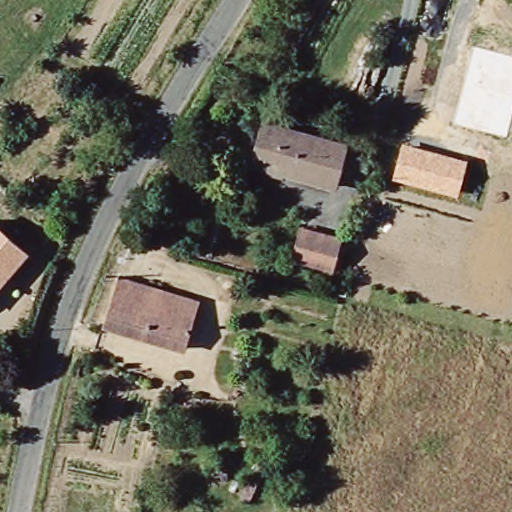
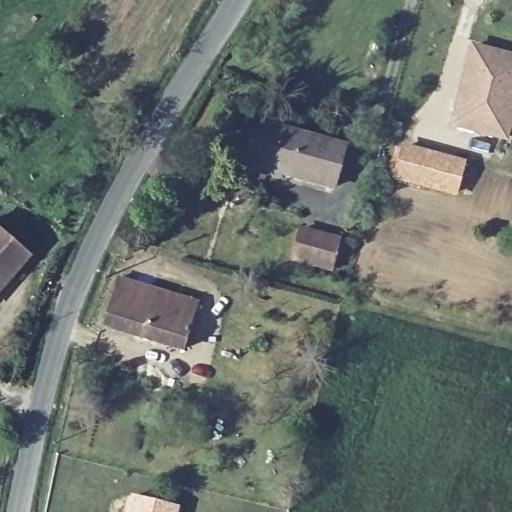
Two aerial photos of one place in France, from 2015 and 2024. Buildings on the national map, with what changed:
new [(473,46),(512,55),(512,124),(509,135),(451,124),(473,46)]
unchanged [(345,149),(333,191),(252,170),(263,127),(345,149)]
unchanged [(466,160),(457,197),(391,179),(401,143),(466,160)]
unchanged [(305,231),(341,241),(333,272),(296,262),(305,231)]
unchanged [(0,237),(25,259),(0,285),(0,237)]
unchanged [(105,329),(117,283),(194,304),(181,350),(105,329)]
new [(129,493),(180,506),(179,512),(123,512),(129,493)]

